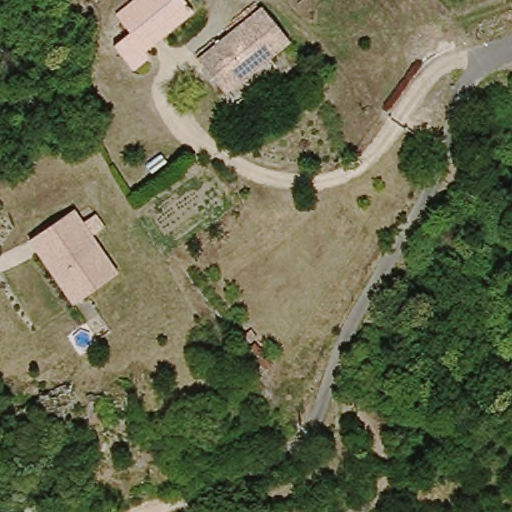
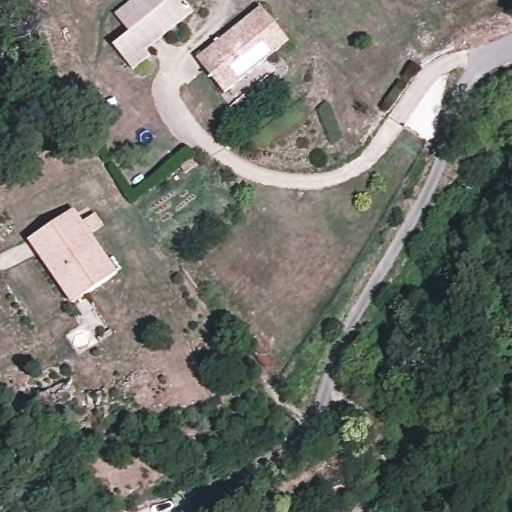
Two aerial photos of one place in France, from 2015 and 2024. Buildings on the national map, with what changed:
unchanged [(110,41),(127,27),(113,12),(129,0),(186,0),(193,11),(146,46),(152,53),(129,68),(110,41)]
unchanged [(196,57),(261,4),(293,39),(227,91),(196,57)]
unchanged [(79,207),(122,271),(75,301),(35,237),(79,207)]
unchanged [(45,512),(0,512),(0,511),(45,511),(45,512)]

